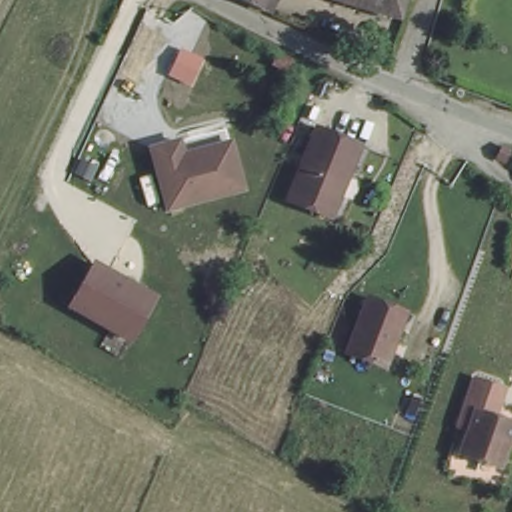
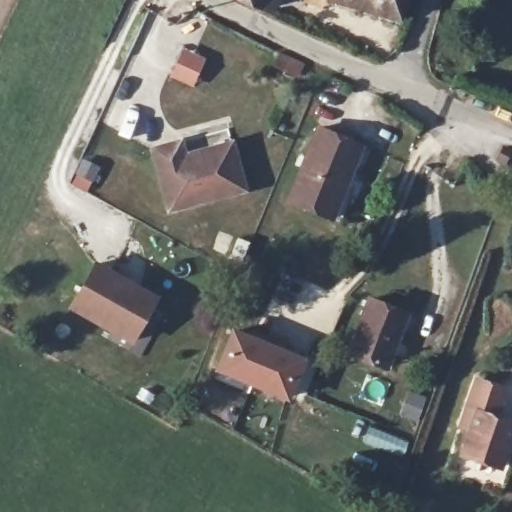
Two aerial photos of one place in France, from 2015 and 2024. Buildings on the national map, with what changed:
unchanged [(272,0),(269,8),(246,0),(272,0)]
unchanged [(408,0),(401,25),(326,0),(408,0)]
demolished [(215,45),(232,55),(215,94),(198,85),(215,45)]
unchanged [(182,49),(205,57),(191,86),(168,77),(182,49)]
new [(276,51),(305,63),(299,79),(269,67),(276,51)]
unchanged [(289,201),(320,127),(355,142),(365,147),(350,186),(336,222),(289,201)]
unchanged [(182,136),(187,157),(234,145),(245,184),(170,205),(154,144),(182,136)]
unchanged [(154,289),(132,332),(71,300),(93,257),(154,289)]
unchanged [(376,358),(352,350),(372,295),(405,309),(392,341),(384,362),(376,358)]
new [(230,326),(249,334),(251,329),(291,345),(289,351),(306,358),(287,402),(213,371),(230,326)]
unchanged [(505,417),(512,419),(512,429),(500,462),(462,449),(470,426),(462,422),(479,375),(507,386),(496,413),(505,417)]

